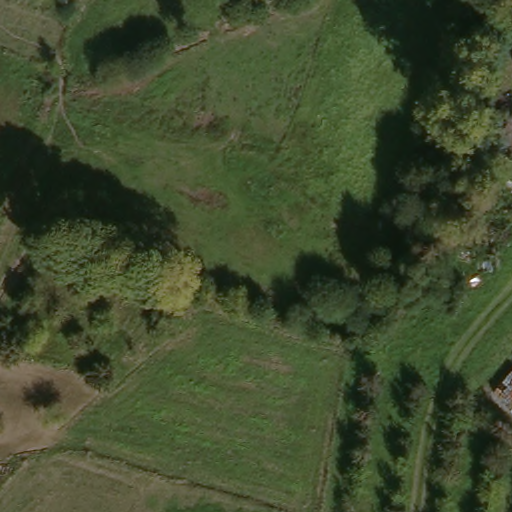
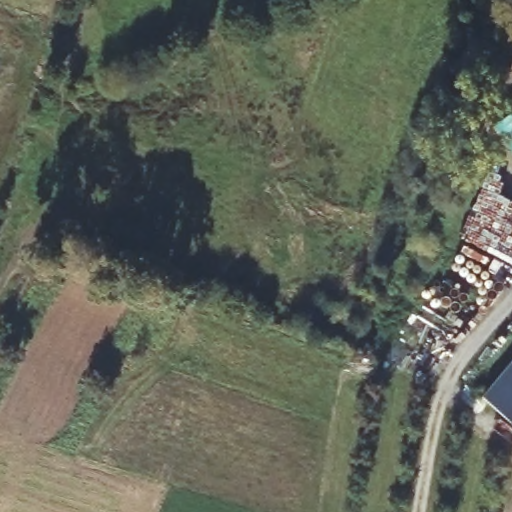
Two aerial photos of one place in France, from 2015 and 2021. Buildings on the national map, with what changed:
new [(493,122),(512,109),(512,148),(493,122)]
new [(483,394),(512,359),(512,418),(483,394)]

